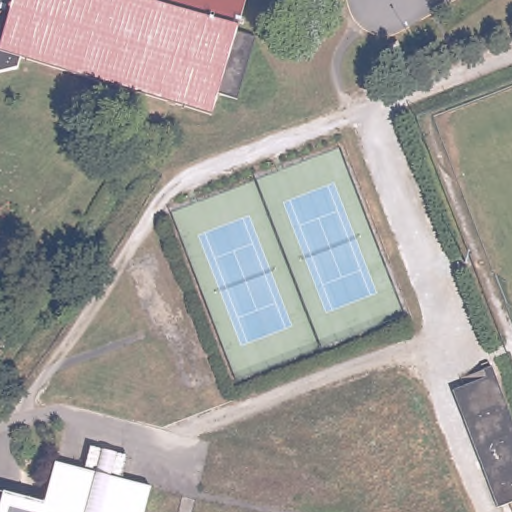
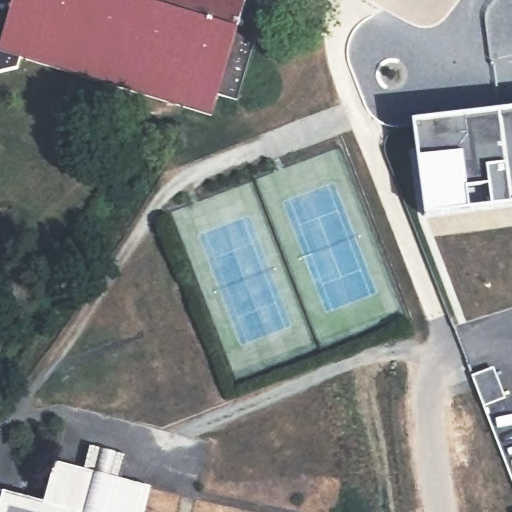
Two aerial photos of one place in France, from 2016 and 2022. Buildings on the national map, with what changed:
unchanged [(247,0),(236,35),(254,40),(234,102),(215,97),(208,121),(23,63),(21,70),(0,75),(0,0),(247,0)]
new [(411,122),(512,110),(512,207),(424,219),(411,122)]
demolished [(497,508),(480,465),(456,403),(450,393),(467,388),(475,385),(473,379),(492,373),(512,422),(512,510),(510,504),(497,508)]
unchanged [(120,480),(151,489),(145,512),(0,512),(0,504),(3,495),(43,506),(57,461),(85,470),(120,480)]

